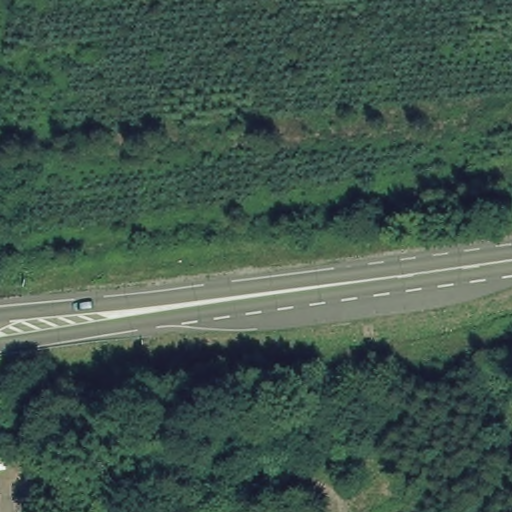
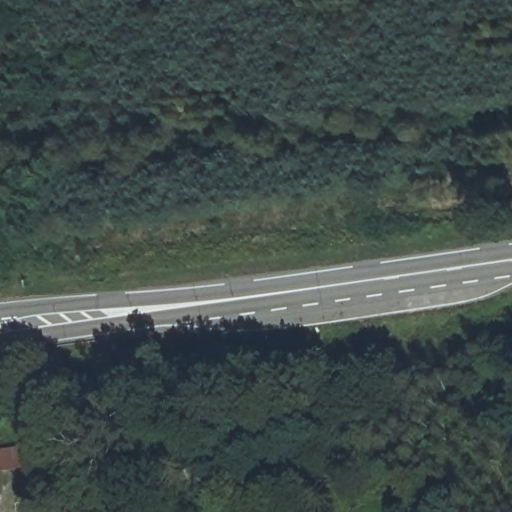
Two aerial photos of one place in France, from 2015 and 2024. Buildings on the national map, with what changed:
unchanged [(392,501),(350,502),(349,471),(370,471),(369,448),(396,449),(392,501)]
unchanged [(3,512),(0,512),(0,483),(3,512)]

